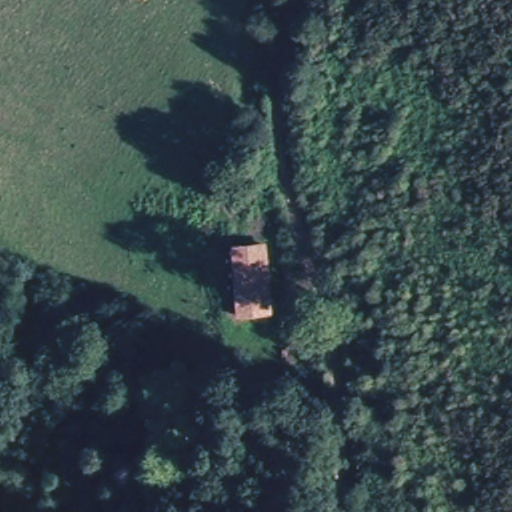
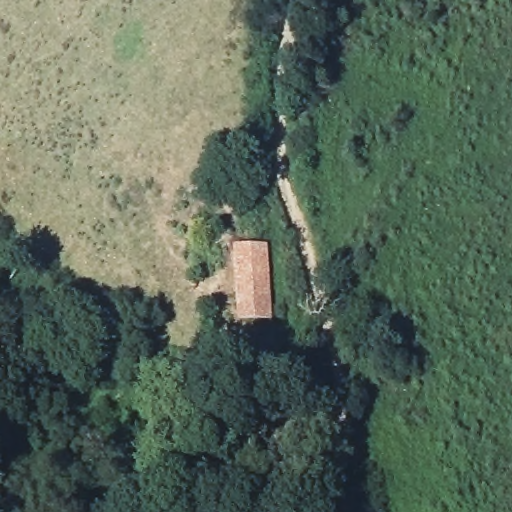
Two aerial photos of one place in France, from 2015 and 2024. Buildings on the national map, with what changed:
unchanged [(264,245),(270,319),(235,321),(230,247),(264,245)]

